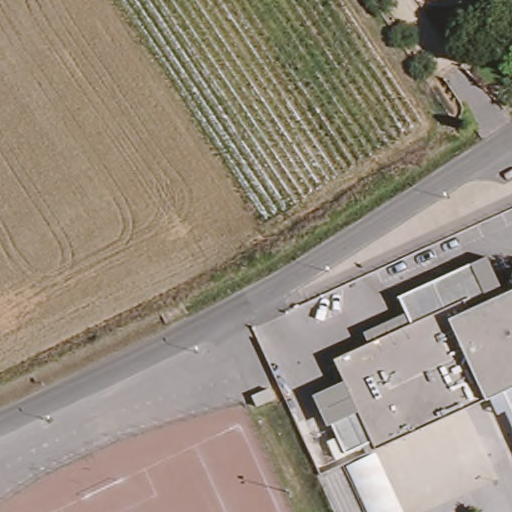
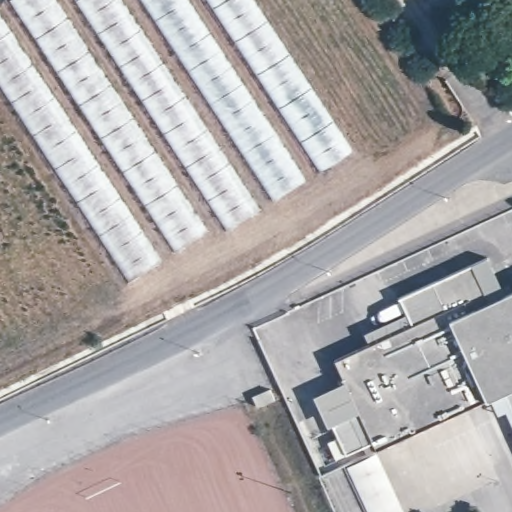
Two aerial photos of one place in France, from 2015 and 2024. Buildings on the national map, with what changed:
new [(0,84),(0,7),(11,0),(254,0),(353,151),(227,230),(221,221),(130,281),(0,84)]
unchanged [(377,459),(374,451),(347,463),(323,411),(349,399),(335,369),(411,332),(399,306),(471,271),(487,264),(505,302),(512,298),(512,395),(502,400),(377,459)]
unchanged [(502,400),(512,395),(512,420),(511,419),(502,400)]
unchanged [(402,512),(372,512),(351,468),(377,457),(402,512)]

